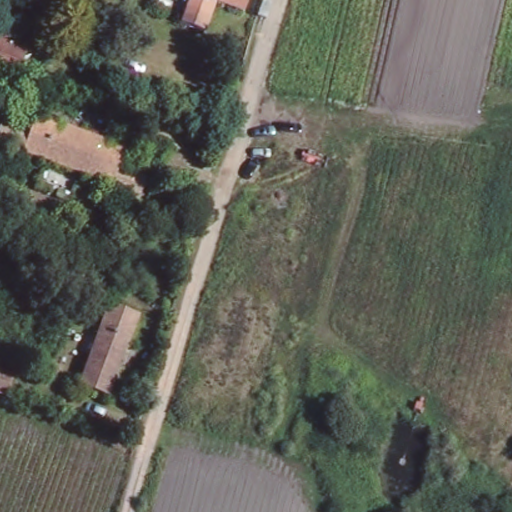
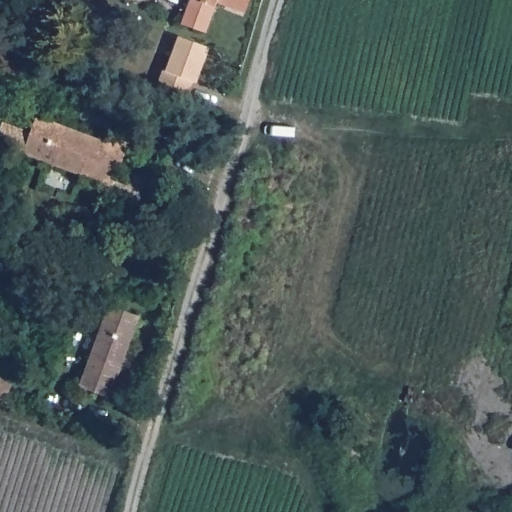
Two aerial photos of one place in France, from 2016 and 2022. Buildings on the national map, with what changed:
unchanged [(215,2),(204,31),(181,23),(190,0),(248,0),(243,12),(215,2)]
new [(163,73),(165,75),(179,40),(209,52),(195,87),(192,86),(186,103),(155,92),(163,73)]
unchanged [(0,77),(0,42),(10,46),(7,53),(25,59),(17,83),(0,77)]
unchanged [(143,178),(135,200),(107,190),(109,184),(20,152),(19,156),(0,149),(0,122),(28,131),(33,117),(34,116),(107,143),(110,136),(125,142),(116,167),(143,178)]
unchanged [(80,389),(103,324),(109,308),(137,318),(131,334),(108,399),(80,389)]
unchanged [(0,377),(8,380),(0,402),(0,377)]

